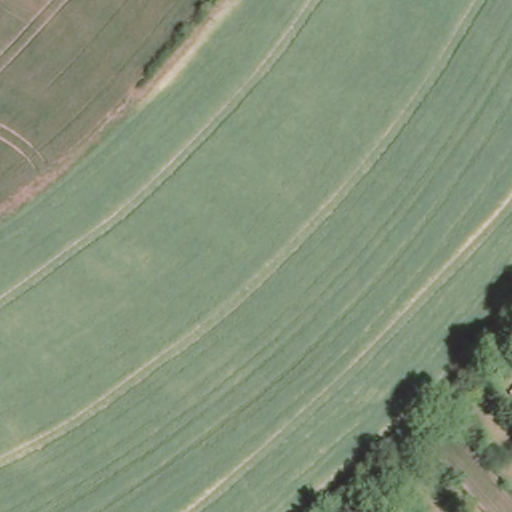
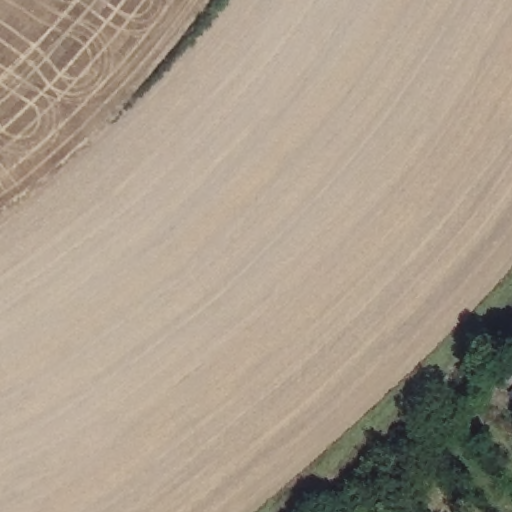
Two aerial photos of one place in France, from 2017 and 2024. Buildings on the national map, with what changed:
[]

